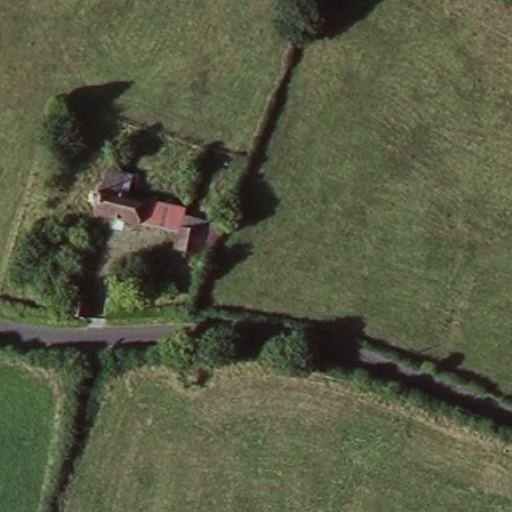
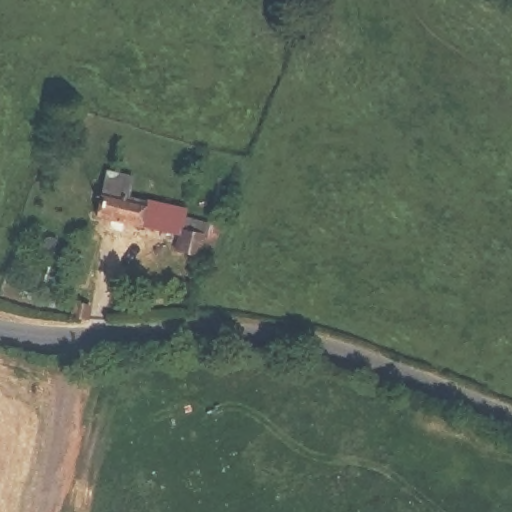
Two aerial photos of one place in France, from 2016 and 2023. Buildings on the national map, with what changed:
unchanged [(132,178),(129,196),(187,211),(185,219),(221,230),(209,262),(172,254),(175,238),(93,218),(105,170),(132,178)]
unchanged [(72,317),(75,303),(90,306),(87,320),(72,317)]

